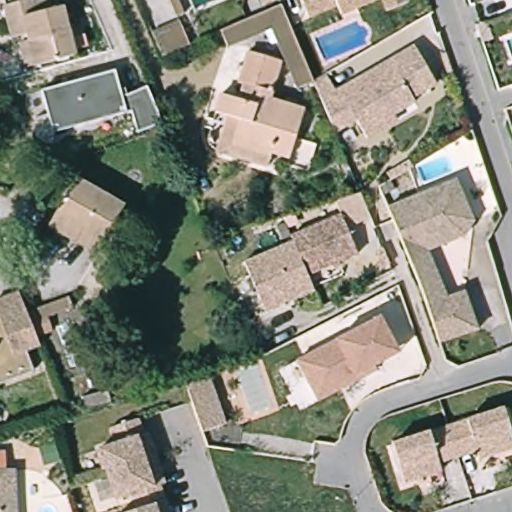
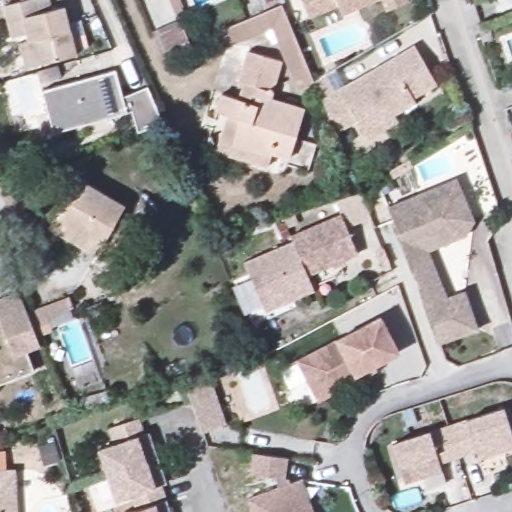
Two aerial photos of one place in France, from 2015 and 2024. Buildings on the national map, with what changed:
unchanged [(55,0),(59,13),(63,11),(82,57),(31,76),(20,51),(29,45),(26,38),(16,41),(6,9),(28,0),(55,0)]
unchanged [(338,2),(308,15),(301,0),(365,0),(343,11),(338,2)]
unchanged [(384,0),(401,0),(388,7),(384,0)]
unchanged [(299,86),(294,77),(281,80),(279,98),(309,105),(305,130),(324,139),(311,181),(216,152),(221,120),(226,94),(239,93),(246,56),(279,60),(271,36),(228,51),(218,32),(286,4),(314,80),(299,86)]
unchanged [(165,53),(154,28),(182,17),(191,43),(165,53)]
unchanged [(394,116),(397,122),(367,138),(358,121),(335,135),(313,82),(326,76),(333,90),(414,43),(444,89),(394,116)]
unchanged [(146,90),(161,125),(139,134),(131,112),(122,113),(51,133),(41,92),(113,71),(121,98),(146,90)]
unchanged [(409,259),(388,206),(456,177),(469,211),(461,228),(436,239),(432,231),(422,236),(448,302),(449,304),(464,299),(476,332),(438,345),(427,311),(409,259)]
unchanged [(124,209),(94,256),(51,229),(81,180),(124,209)]
unchanged [(308,275),(314,291),(266,310),(243,261),(290,241),(288,235),(337,215),(331,201),(354,190),(368,220),(349,227),(359,254),(308,275)]
unchanged [(37,371),(0,384),(0,319),(2,318),(0,313),(0,292),(21,284),(44,344),(28,350),(37,371)]
unchanged [(316,401),(293,360),(378,314),(400,353),(316,401)]
unchanged [(225,377),(241,425),(218,433),(202,386),(225,377)]
unchanged [(512,426),(512,434),(510,434),(512,439),(512,445),(474,458),(469,450),(437,460),(439,472),(400,483),(384,445),(503,408),(512,426)]
unchanged [(139,503),(134,489),(118,494),(109,469),(101,442),(119,438),(113,423),(141,414),(146,429),(151,427),(159,452),(168,478),(161,479),(166,494),(139,503)]
new [(302,480),(313,512),(250,512),(246,498),(276,488),(271,477),(249,473),(253,454),(289,458),(286,476),(289,484),(302,480)]
unchanged [(19,512),(0,512),(0,473),(18,472),(19,512)]
unchanged [(117,511),(139,503),(166,494),(172,512),(117,512),(117,511)]

